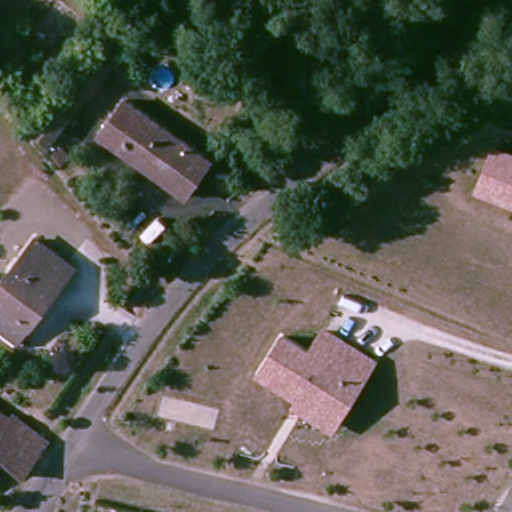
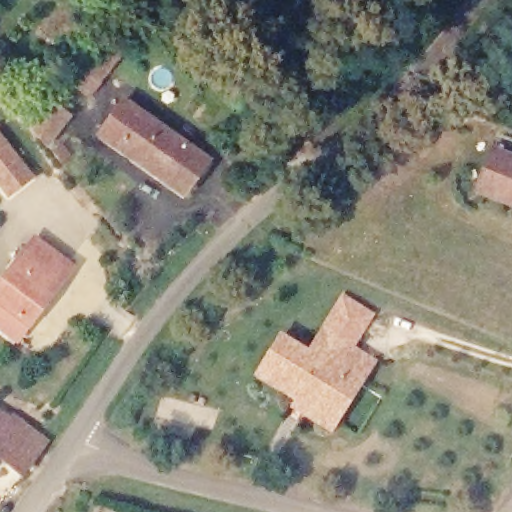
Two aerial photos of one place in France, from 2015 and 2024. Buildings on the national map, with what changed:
unchanged [(109,34),(126,48),(102,76),(88,94),(71,80),(86,62),(109,34)]
unchanged [(176,191),(100,128),(130,92),(206,155),(176,191)]
unchanged [(34,123),(56,96),(75,112),(52,138),(34,123)]
new [(36,178),(9,198),(0,187),(0,131),(36,178)]
unchanged [(492,145),(512,153),(512,206),(473,190),(492,145)]
unchanged [(40,244),(75,270),(29,325),(19,336),(0,321),(0,295),(40,244)]
new [(322,329),(343,293),(375,313),(355,348),(322,329)]
unchanged [(331,433),(290,406),(295,397),(255,374),(281,332),(309,349),(322,329),(378,361),(331,433)]
unchanged [(0,460),(0,407),(42,436),(17,475),(0,460)]

